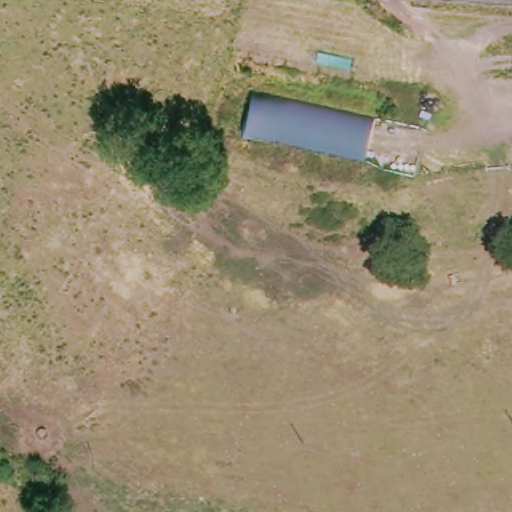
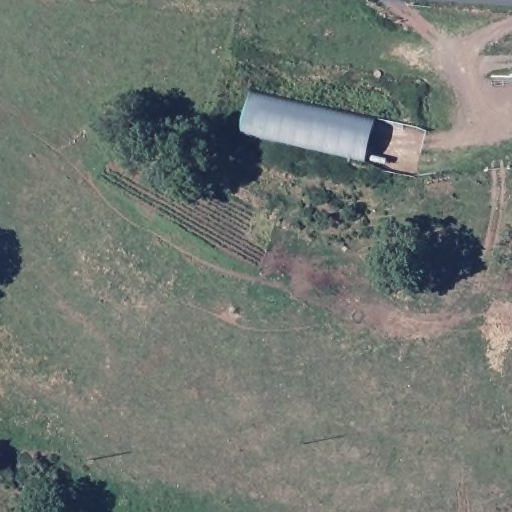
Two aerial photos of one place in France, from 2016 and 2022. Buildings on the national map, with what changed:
unchanged [(372,161),(247,136),(257,90),(382,117),(372,161)]

